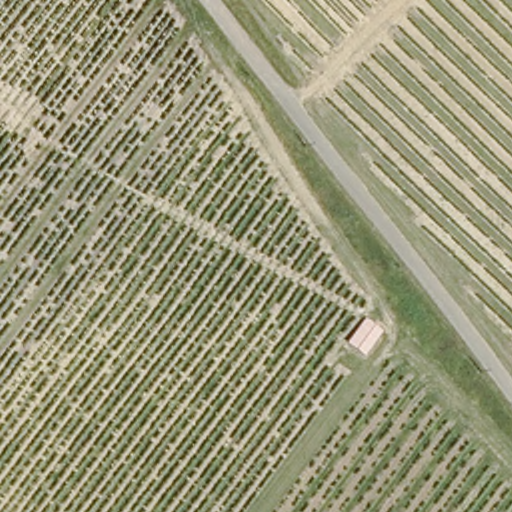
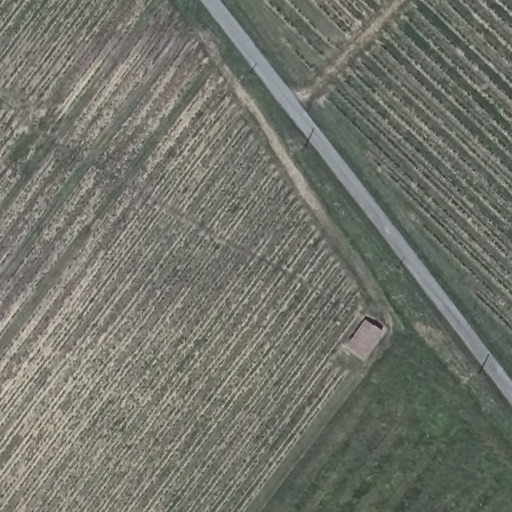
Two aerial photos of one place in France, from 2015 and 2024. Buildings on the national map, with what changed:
unchanged [(384,332),(364,357),(349,344),(368,321),(384,332)]

